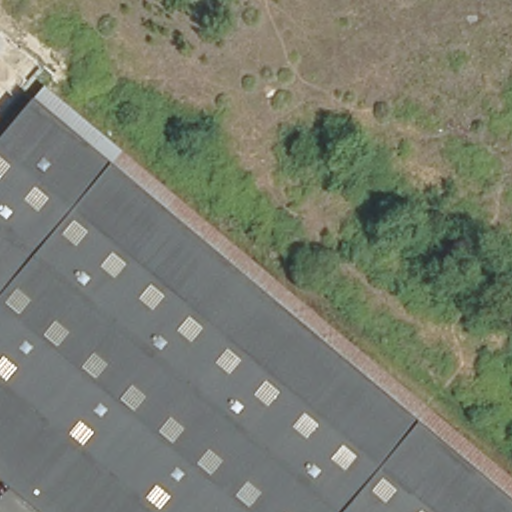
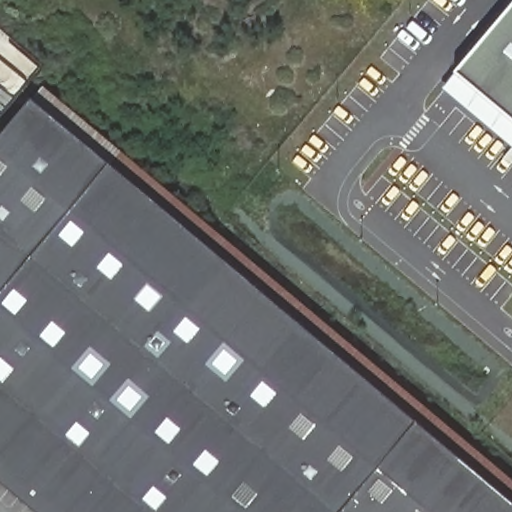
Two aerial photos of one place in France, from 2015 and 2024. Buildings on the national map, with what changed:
new [(512,4),(512,123),(453,74),(512,4)]
unchanged [(512,512),(40,512),(0,479),(0,132),(32,95),(512,498),(512,512)]

